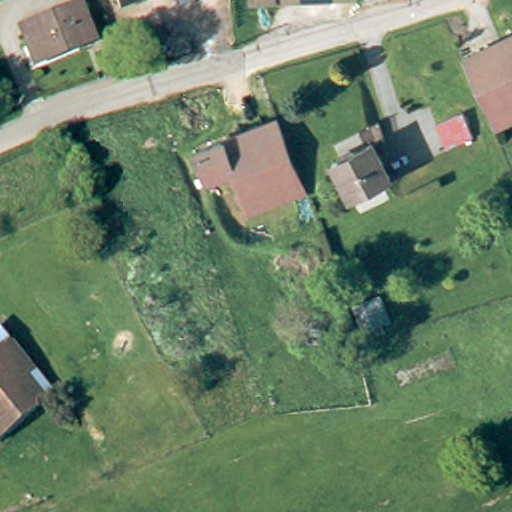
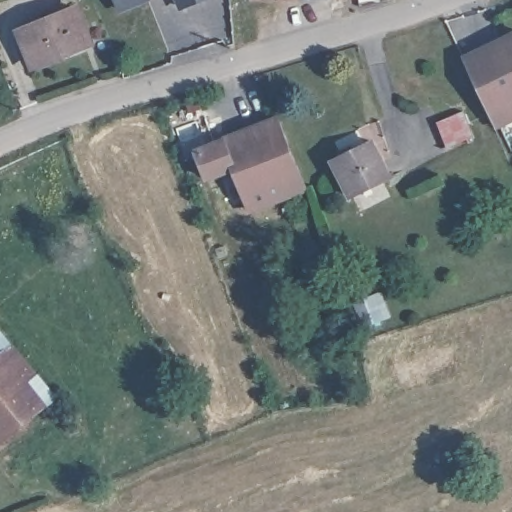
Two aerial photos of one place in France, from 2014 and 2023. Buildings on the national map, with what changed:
unchanged [(117,13),(113,0),(151,0),(117,13)]
unchanged [(179,11),(174,0),(204,0),(179,11)]
unchanged [(360,5),(331,8),(331,0),(359,0),(360,5)]
unchanged [(81,4),(96,39),(41,62),(26,27),(81,4)]
unchanged [(512,116),(495,124),(465,53),(512,32),(512,116)]
unchanged [(463,112),(473,138),(446,148),(436,123),(463,112)]
unchanged [(230,164),(204,173),(192,146),(275,115),(303,184),(245,205),(230,164)]
unchanged [(373,142),(390,177),(351,197),(334,162),(373,142)]
unchanged [(45,404),(0,441),(0,324),(30,365),(20,373),(45,404)]

